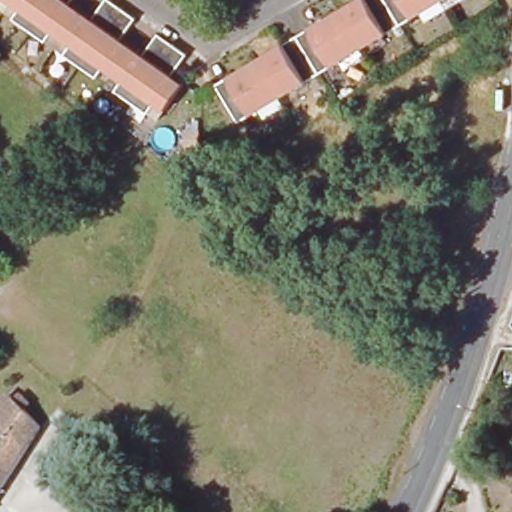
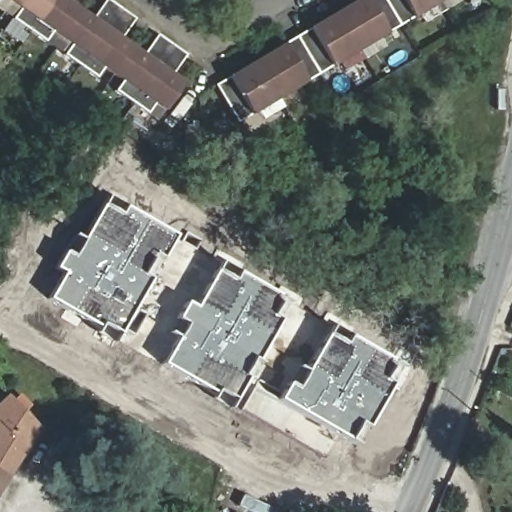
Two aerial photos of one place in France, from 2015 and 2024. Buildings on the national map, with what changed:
unchanged [(4,0),(0,5),(0,0),(4,0)]
unchanged [(97,21),(111,0),(115,0),(141,19),(126,41),(148,56),(163,34),(192,55),(177,77),(189,85),(171,110),(161,102),(154,114),(120,91),(127,79),(110,67),(103,78),(69,55),(77,44),(59,31),(51,42),(18,19),(26,8),(15,0),(78,0),(75,5),(97,21)]
unchanged [(216,85),(357,0),(443,0),(238,123),(216,85)]
new [(143,276),(150,278),(115,337),(47,300),(62,273),(54,269),(62,252),(72,257),(101,204),(119,214),(123,206),(172,235),(161,257),(153,253),(143,276)]
new [(233,280),(238,272),(284,298),(274,315),(281,319),(257,362),(252,359),(243,376),(246,378),(228,402),(162,365),(186,326),(177,321),(187,302),(196,307),(214,269),(233,280)]
new [(400,364),(356,442),(277,400),(296,367),(306,372),(332,327),(400,364)]
unchanged [(9,394),(43,429),(12,477),(0,495),(0,403),(9,394)]

